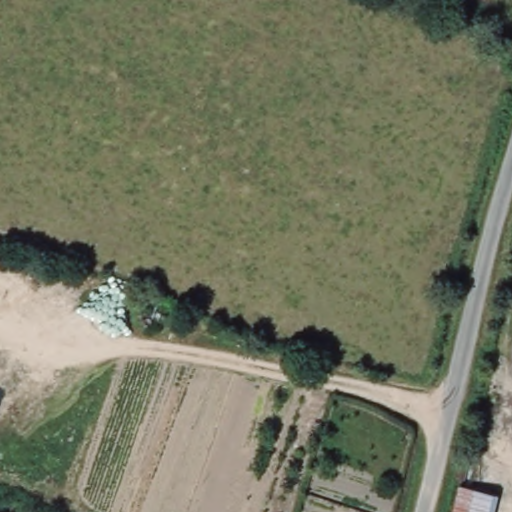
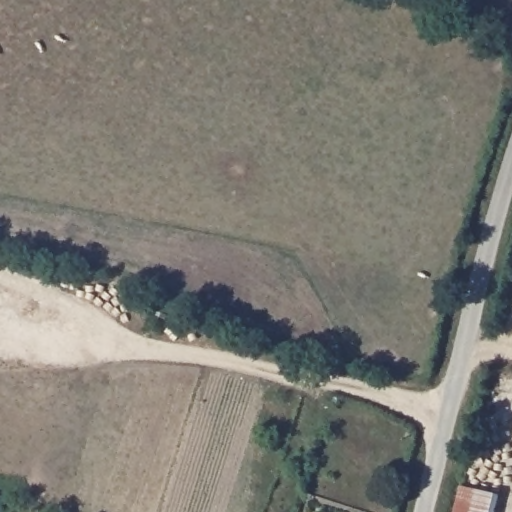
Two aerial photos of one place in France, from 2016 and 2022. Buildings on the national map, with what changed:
unchanged [(497,495),(493,512),(452,512),(458,487),(497,495)]

